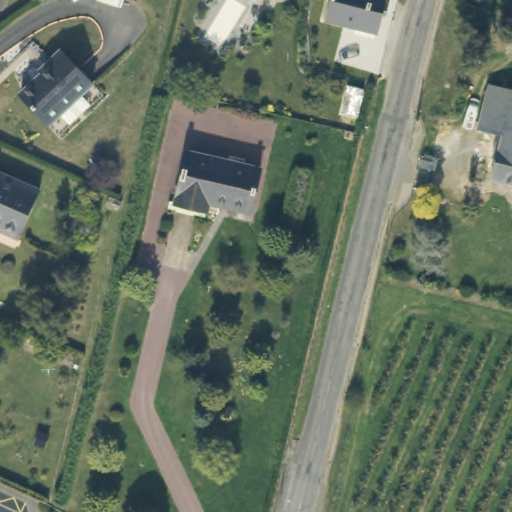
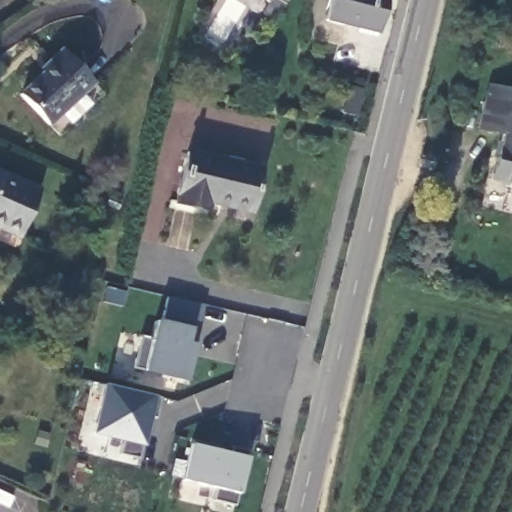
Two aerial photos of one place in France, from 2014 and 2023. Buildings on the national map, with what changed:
unchanged [(375,33),(326,20),(332,0),(385,0),(375,33)]
unchanged [(47,66),(44,63),(58,50),(90,84),(46,124),(16,93),(47,66)]
unchanged [(499,134),(478,129),(488,86),(512,91),(512,182),(490,177),(499,134)]
unchanged [(258,168),(247,207),(208,196),(204,212),(173,203),(188,149),(258,168)]
unchanged [(43,189),(21,235),(0,225),(0,170),(43,189)]
new [(139,335),(150,338),(153,321),(159,323),(166,297),(203,305),(196,333),(191,331),(188,345),(193,346),(185,381),(131,368),(139,335)]
new [(102,386),(158,399),(153,420),(146,418),(135,461),(116,456),(119,442),(90,435),(102,386)]
new [(191,440),(216,446),(215,450),(229,454),(231,446),(248,450),(234,506),(211,501),(214,489),(181,480),(191,440)]

